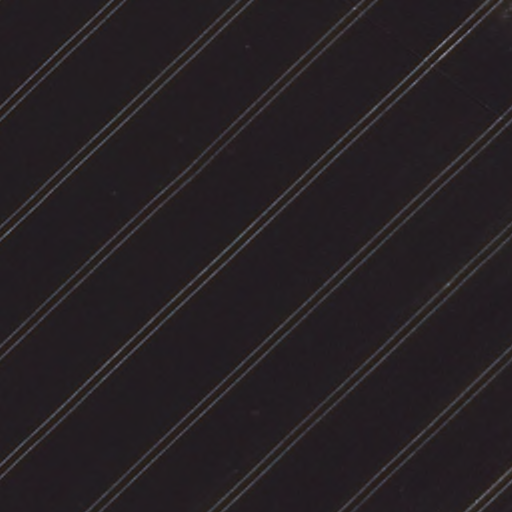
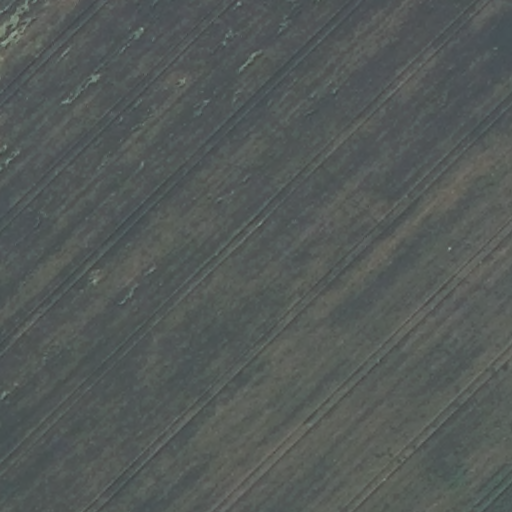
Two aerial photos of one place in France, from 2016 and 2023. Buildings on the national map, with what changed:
[]

